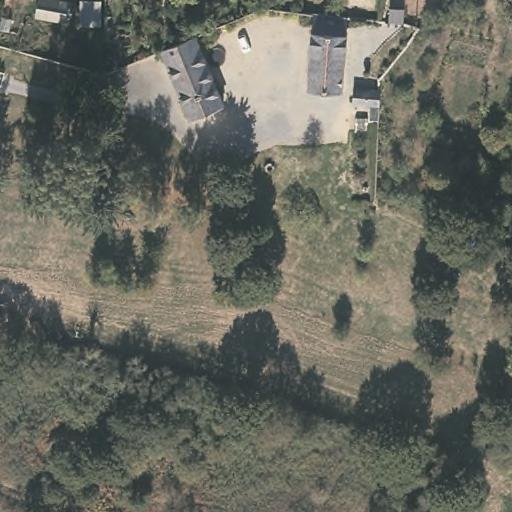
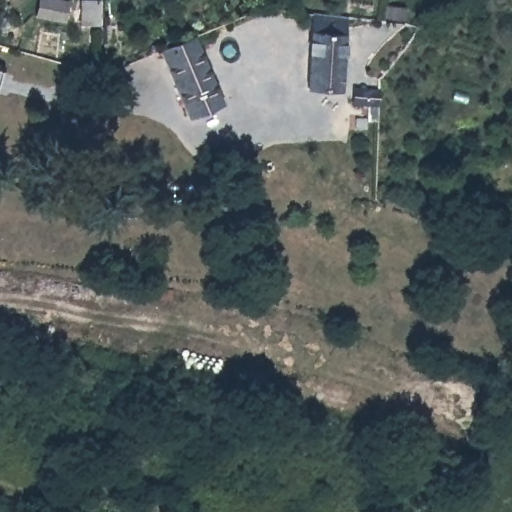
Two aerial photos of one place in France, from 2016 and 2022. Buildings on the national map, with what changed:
unchanged [(99,24),(79,24),(79,0),(99,0),(99,24)]
unchanged [(353,13),(349,84),(313,83),(317,7),(353,13)]
unchanged [(229,100),(197,113),(168,43),(199,30),(229,100)]
unchanged [(385,84),(384,100),(359,100),(360,82),(385,84)]

